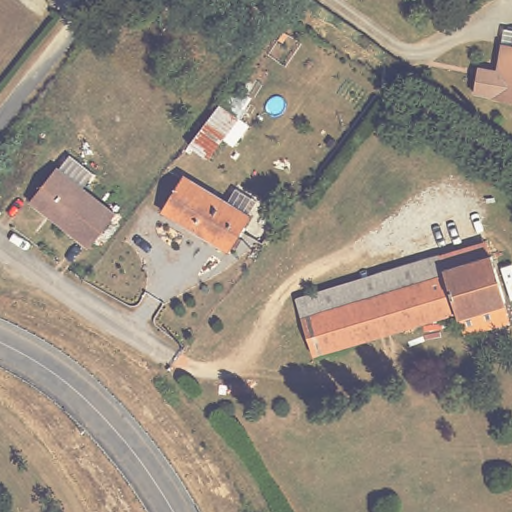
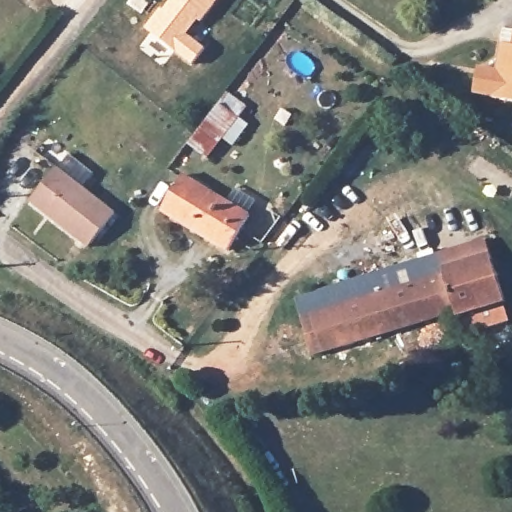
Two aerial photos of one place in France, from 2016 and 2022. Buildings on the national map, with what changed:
new [(164,9),(171,0),(219,0),(201,23),(198,21),(188,33),(206,46),(193,64),(145,28),(161,7),(164,9)]
unchanged [(469,87),(473,71),(482,65),(494,68),(502,27),(512,29),(512,98),(469,87)]
unchanged [(234,106),(207,144),(192,134),(222,96),(234,106)]
unchanged [(31,197),(56,164),(59,166),(68,153),(91,171),(95,175),(96,181),(96,187),(92,193),(115,210),(93,243),(31,197)]
unchanged [(226,242),(165,207),(185,175),(245,211),(226,242)]
unchanged [(495,247),(512,306),(512,319),(466,332),(457,308),(315,350),(298,293),(442,251),(446,261),(495,247)]

